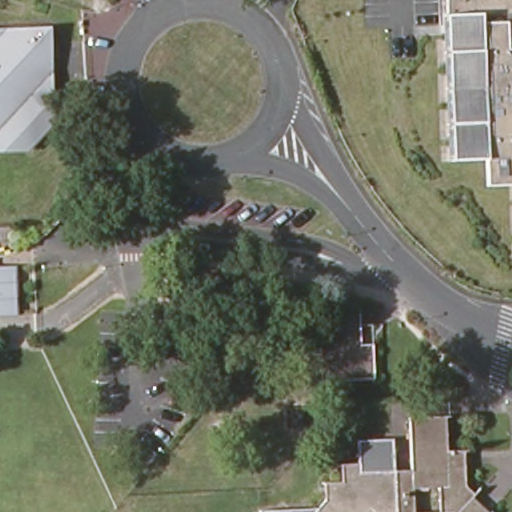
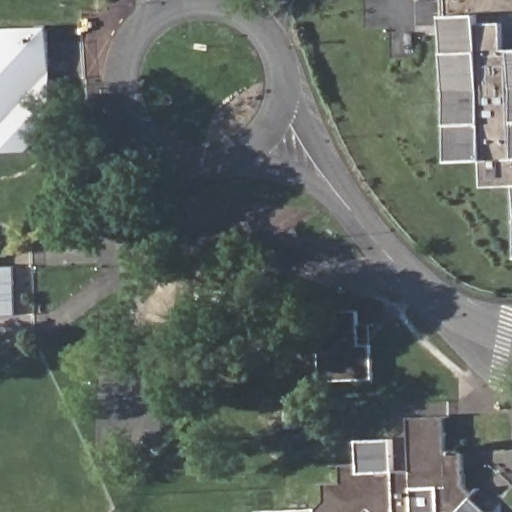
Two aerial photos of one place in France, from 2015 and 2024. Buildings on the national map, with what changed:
unchanged [(486,161),(455,164),(449,14),(448,0),(512,0),(512,186),(487,188),(486,161)]
unchanged [(36,139),(30,147),(0,148),(0,31),(44,28),(50,108),(51,121),(36,139)]
unchanged [(232,291),(174,285),(177,241),(237,247),(232,291)]
unchanged [(14,269),(16,317),(0,318),(0,269),(14,269)]
unchanged [(366,307),(367,341),(380,341),(381,374),(328,376),(326,309),(366,307)]
unchanged [(447,412),(448,447),(466,447),(467,481),(477,490),(473,493),(492,511),(491,512),(261,512),(261,508),(270,507),(319,505),(317,479),(342,478),(342,460),(362,460),(360,437),(395,435),(397,467),(413,466),(411,414),(447,412)]

